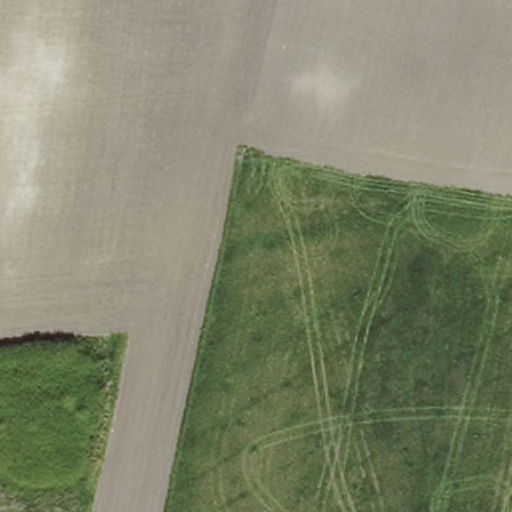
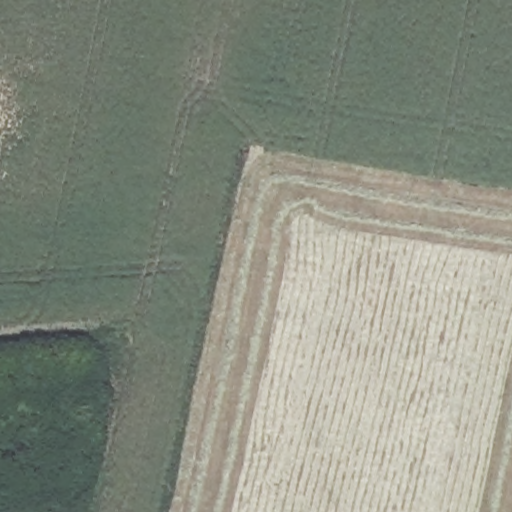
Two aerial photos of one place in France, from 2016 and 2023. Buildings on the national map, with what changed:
[]

